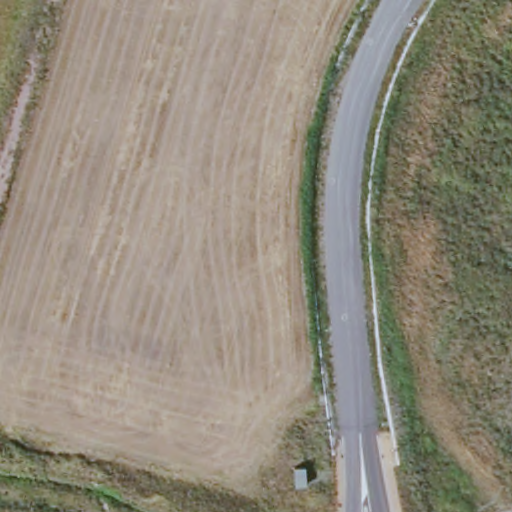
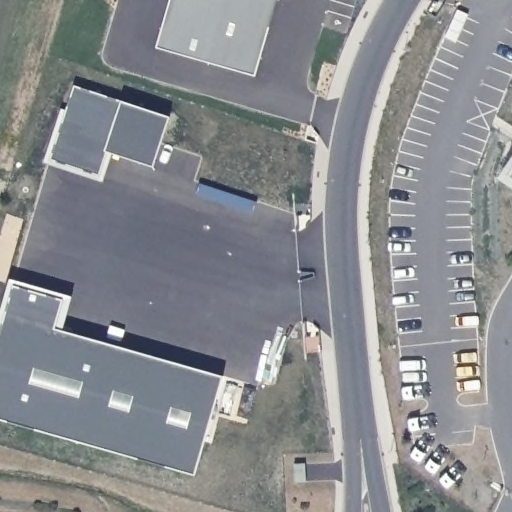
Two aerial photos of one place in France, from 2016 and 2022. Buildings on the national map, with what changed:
new [(277,0),(256,76),(157,48),(171,0),(277,0)]
new [(171,116),(154,167),(108,152),(100,175),(50,159),(75,85),(171,116)]
new [(506,176),(512,168),(512,181),(506,176)]
new [(64,299),(56,328),(224,376),(195,475),(0,419),(0,332),(14,285),(64,299)]

